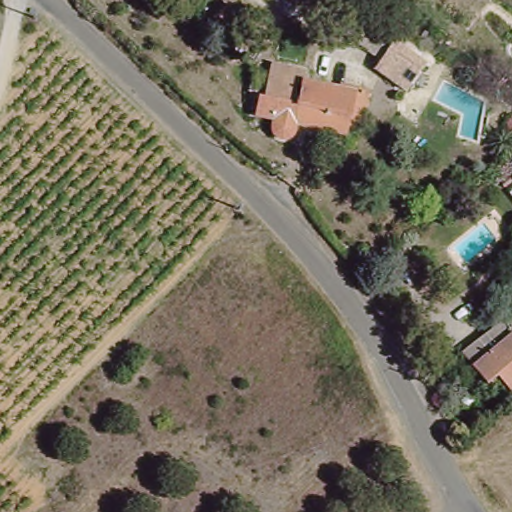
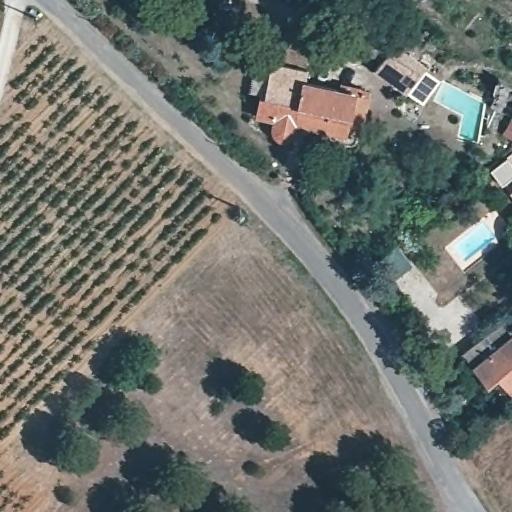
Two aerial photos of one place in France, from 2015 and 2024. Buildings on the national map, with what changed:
unchanged [(409,102),(375,76),(337,35),(361,6),(407,36),(401,47),(432,69),(409,102)]
unchanged [(363,95),(353,135),(305,123),(304,128),(302,133),(299,137),(296,139),(292,140),(289,139),(286,137),(283,135),(282,132),(282,124),(284,117),(266,113),(271,94),(276,95),(281,69),(285,67),(292,69),(293,65),(316,71),(314,82),(363,95)]
unchanged [(508,328),(512,334),(512,397),(500,382),(489,390),(465,361),(508,328)]

